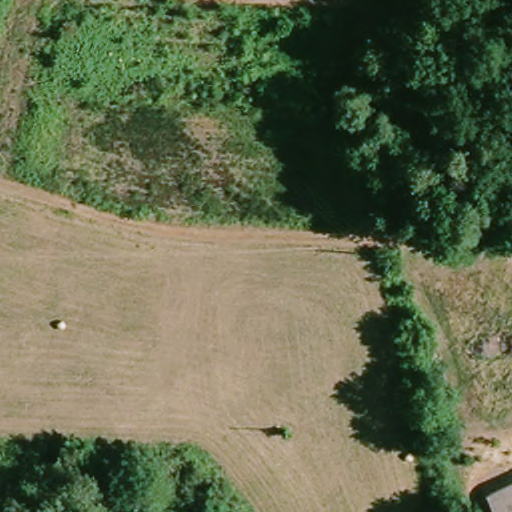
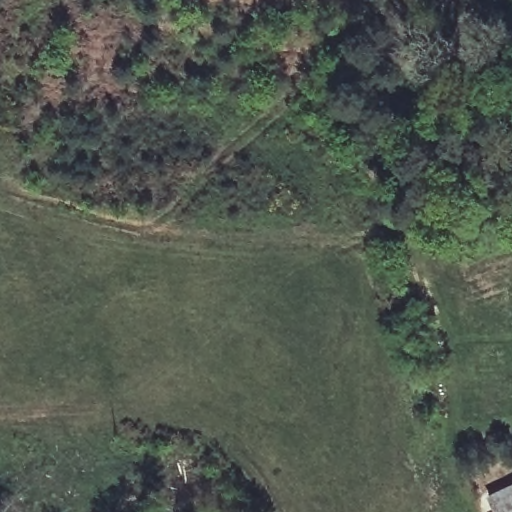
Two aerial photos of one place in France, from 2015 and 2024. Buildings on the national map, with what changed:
unchanged [(490,495),(512,485),(512,512),(499,512),(490,495)]

